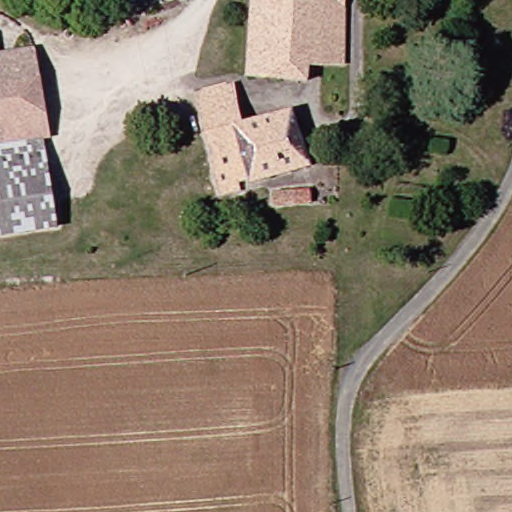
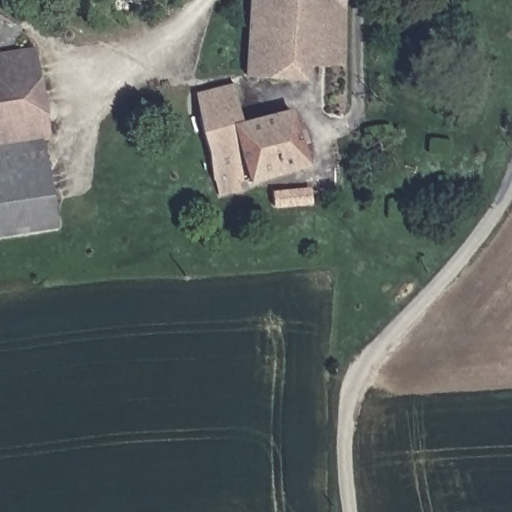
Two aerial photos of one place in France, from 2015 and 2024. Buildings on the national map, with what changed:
unchanged [(359,4),(364,49),(364,61),(318,62),(315,78),(258,78),(258,0),(359,0),(359,4)]
unchanged [(0,86),(0,57),(51,51),(54,79),(0,86)]
unchanged [(0,239),(0,86),(54,79),(60,134),(57,140),(65,231),(0,239)]
unchanged [(243,82),(253,120),(304,109),(319,163),(255,180),(252,189),(229,195),(222,169),(214,130),(207,91),(243,82)]
unchanged [(302,202),(282,205),(280,195),(305,192),(305,195),(324,194),(326,206),(304,208),(302,202)]

